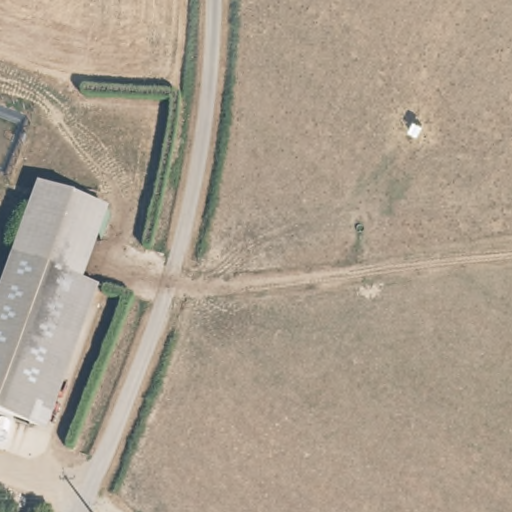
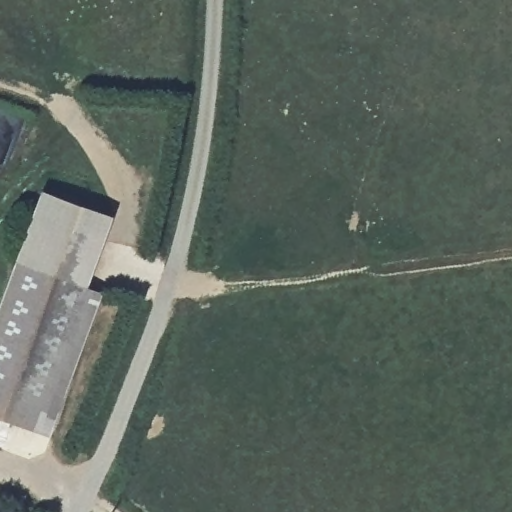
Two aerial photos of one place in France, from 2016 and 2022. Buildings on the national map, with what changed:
unchanged [(107,218),(82,286),(20,261),(44,193),(107,218)]
unchanged [(38,404),(0,390),(0,313),(20,261),(82,286),(38,404)]
unchanged [(38,404),(82,286),(100,292),(47,435),(28,429),(38,404)]
unchanged [(0,419),(0,390),(38,404),(28,429),(0,419)]

